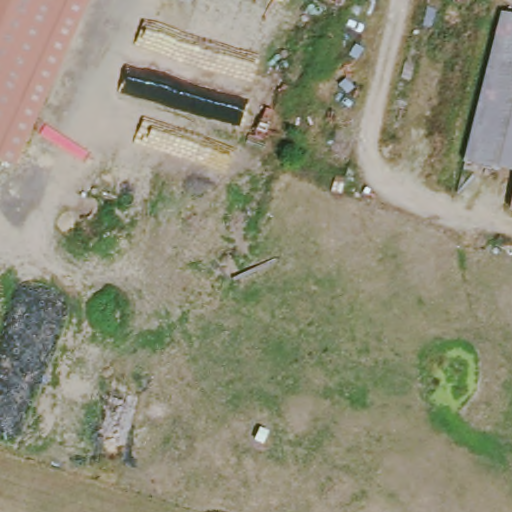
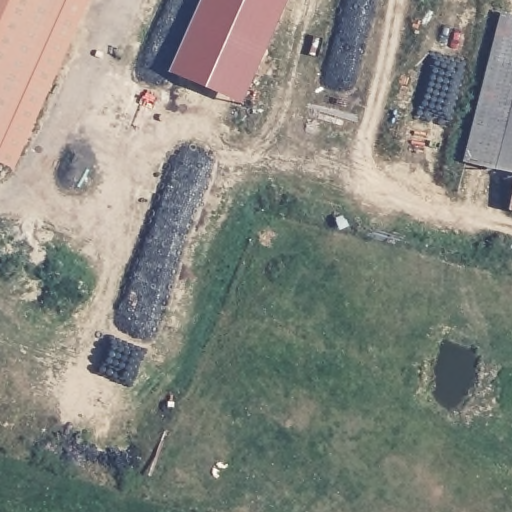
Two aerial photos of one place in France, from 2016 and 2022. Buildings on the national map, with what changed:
unchanged [(0,164),(0,0),(94,0),(16,172),(0,164)]
new [(245,104),(170,72),(203,0),(288,0),(245,104)]
unchanged [(467,163),(505,14),(512,16),(512,176),(467,163)]

